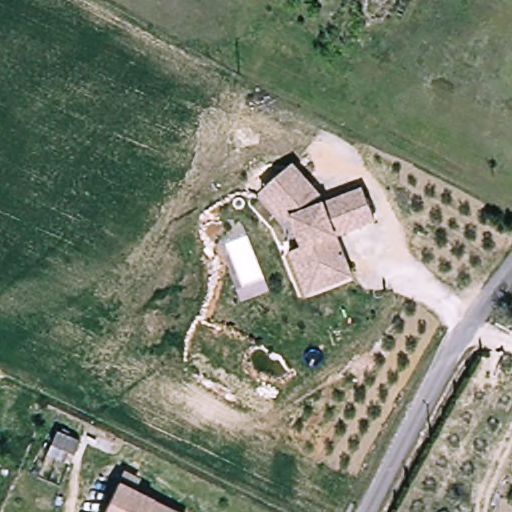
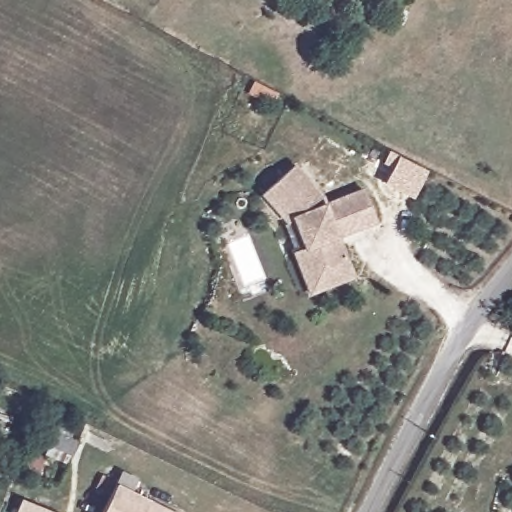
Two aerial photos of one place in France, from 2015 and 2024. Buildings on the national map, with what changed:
unchanged [(322,191),(328,203),(366,188),(379,220),(340,235),(349,260),(318,272),(307,247),(294,216),(288,221),(264,194),(271,187),(298,164),(322,191)]
unchanged [(349,260),(355,275),(313,292),(297,252),(307,247),(318,272),(349,260)]
unchanged [(55,422),(77,432),(71,446),(50,436),(55,422)]
unchanged [(178,512),(108,512),(121,485),(178,512)]

